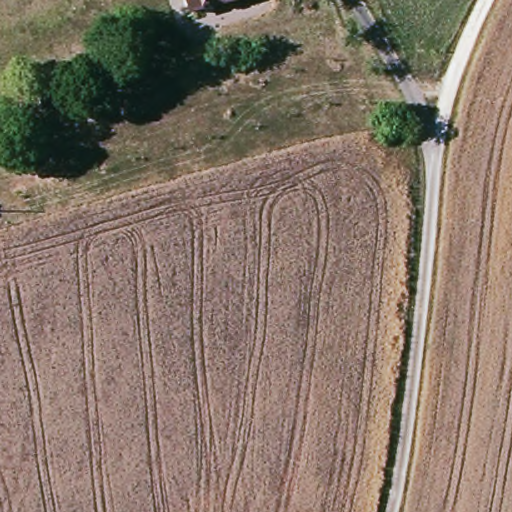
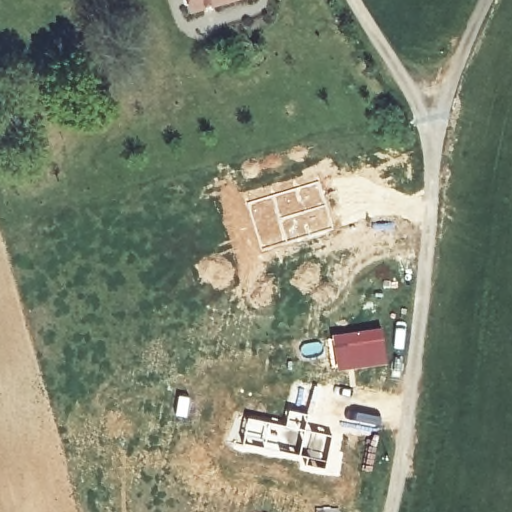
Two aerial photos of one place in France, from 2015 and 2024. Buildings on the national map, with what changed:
unchanged [(192,11),(188,0),(227,0),(192,11)]
new [(382,327),(387,363),(335,370),(330,334),(382,327)]

